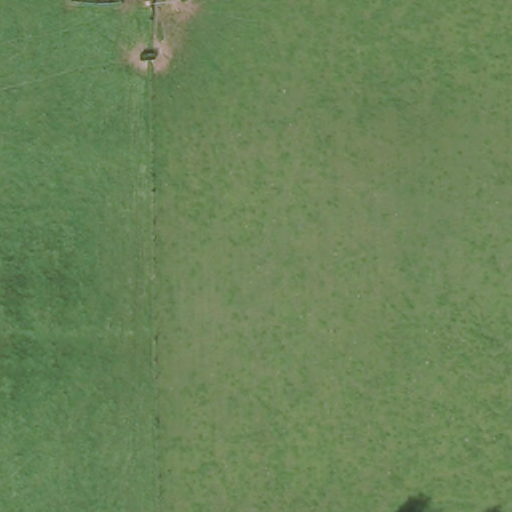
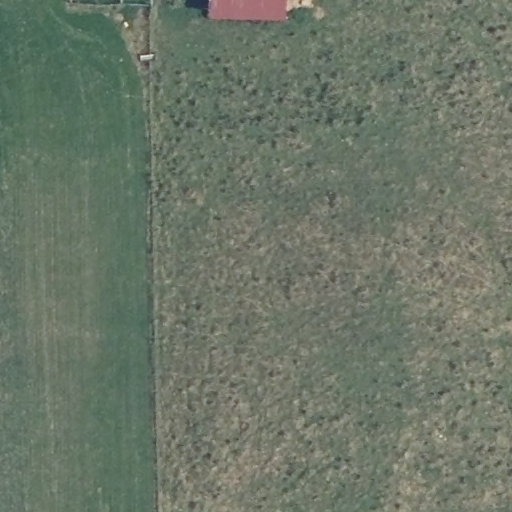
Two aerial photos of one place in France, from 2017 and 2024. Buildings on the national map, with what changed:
new [(288,20),(211,12),(212,0),(291,0),(288,20)]

